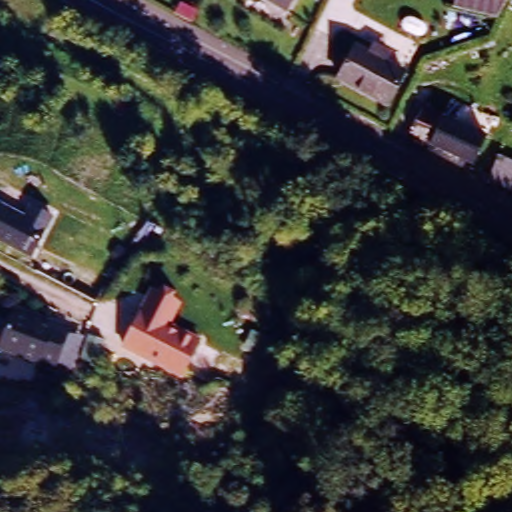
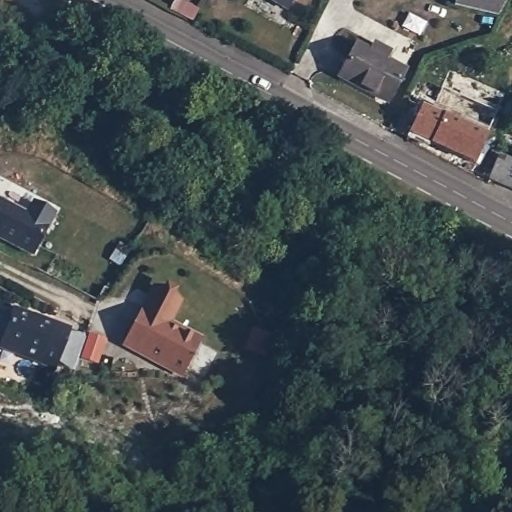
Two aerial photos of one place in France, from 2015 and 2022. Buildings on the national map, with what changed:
unchanged [(276,0),(297,0),(291,10),(276,0)]
unchanged [(453,8),(455,0),(501,0),(494,11),(453,8)]
unchanged [(405,66),(389,100),(340,74),(359,41),(405,66)]
unchanged [(480,161),(408,132),(420,106),(490,131),(482,154),(480,161)]
unchanged [(512,187),(490,179),(498,158),(512,163),(512,187)]
unchanged [(0,248),(0,204),(17,212),(22,201),(52,218),(27,260),(0,248)]
unchanged [(151,284),(182,303),(172,331),(139,314),(151,284)]
unchanged [(50,376),(37,369),(0,349),(0,315),(5,306),(26,317),(25,318),(39,326),(40,324),(56,332),(55,333),(69,340),(50,376)]
unchanged [(192,341),(174,377),(115,347),(134,311),(192,341)]
unchanged [(212,356),(216,349),(214,347),(223,330),(240,338),(230,356),(227,363),(212,356)]

